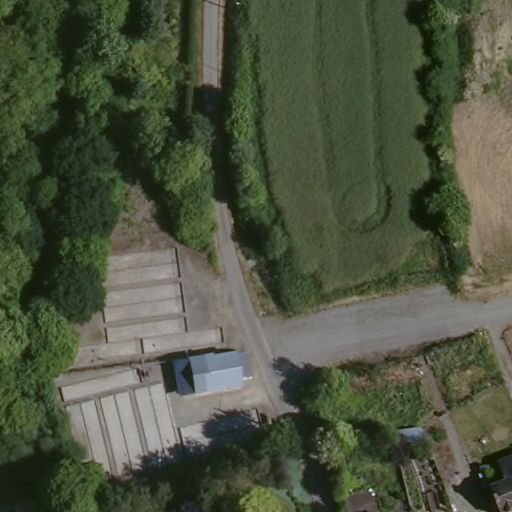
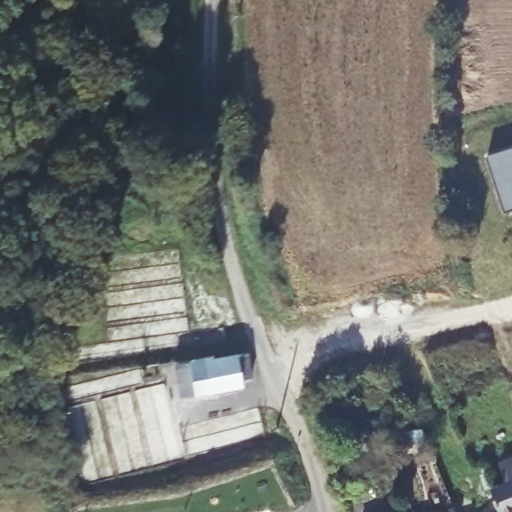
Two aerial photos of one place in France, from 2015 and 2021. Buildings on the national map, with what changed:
new [(512,210),(504,212),(488,155),(512,147),(512,210)]
unchanged [(190,369),(201,367),(200,362),(224,357),(224,361),(258,353),(264,378),(253,381),(254,386),(208,396),(197,398),(190,369)]
unchanged [(507,512),(506,512),(494,483),(512,476),(512,510),(509,511),(507,512)]
demolished [(28,500),(30,512),(0,512),(0,503),(28,500)]

